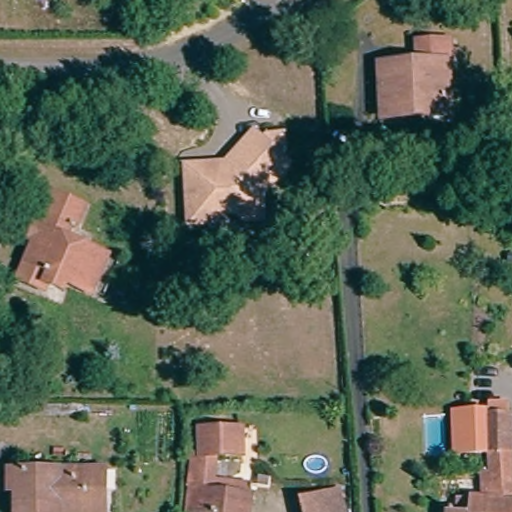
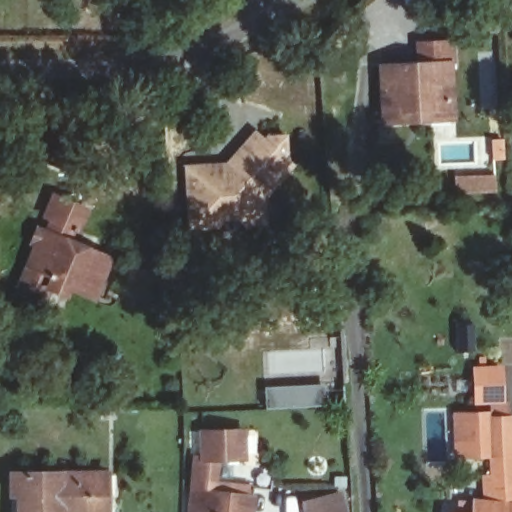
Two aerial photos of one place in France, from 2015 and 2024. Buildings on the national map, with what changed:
unchanged [(417,123),(392,124),(390,67),(421,66),(419,41),(453,40),(454,64),(448,64),(452,112),(452,122),(417,123)]
unchanged [(261,183),(262,212),(257,215),(239,215),(234,208),(218,209),(218,218),(192,217),(190,164),(223,163),(233,150),(252,130),(262,142),(273,129),(286,129),(284,144),(290,152),(261,183)]
unchanged [(69,294),(66,301),(49,294),(21,285),(27,267),(33,248),(28,247),(36,229),(47,233),(51,222),(44,220),(51,200),(80,209),(73,230),(68,228),(64,237),(104,253),(91,292),(88,300),(69,294)]
new [(328,384),(329,405),(266,410),(265,388),(328,384)]
unchanged [(485,500),(485,480),(492,481),(491,455),(471,455),(470,413),(511,413),(512,446),(512,512),(471,512),(472,498),(485,500)]
unchanged [(204,431),(241,429),(242,457),(216,460),(214,478),(253,485),(250,496),(247,512),(193,512),(203,458),(204,431)]
unchanged [(7,496),(8,473),(95,475),(106,475),(105,494),(104,512),(17,512),(17,497),(7,496)]
unchanged [(340,495),(344,512),(303,512),(302,504),(340,495)]

